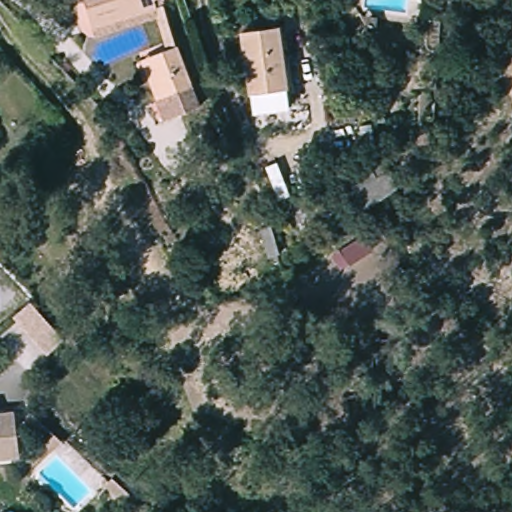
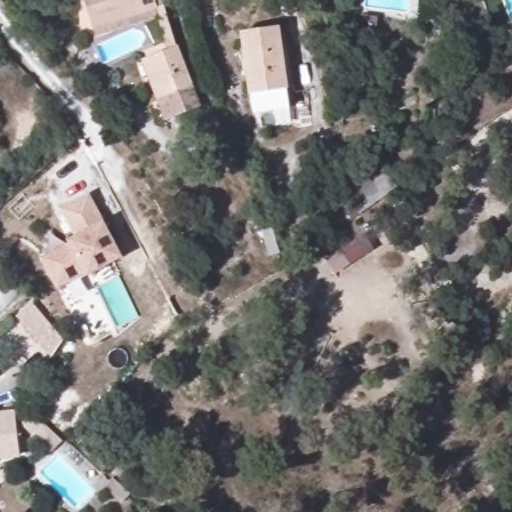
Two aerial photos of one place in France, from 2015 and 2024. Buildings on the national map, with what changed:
unchanged [(128,5),(95,20),(87,0),(156,0),(132,11),(128,5)]
unchanged [(175,36),(162,7),(102,33),(95,20),(128,5),(132,11),(156,0),(167,0),(182,34),(175,36)]
unchanged [(244,28),(288,25),(294,113),(253,115),(244,28)]
unchanged [(145,58),(151,54),(171,44),(177,43),(204,103),(177,114),(170,118),(145,58)]
unchanged [(362,203),(350,169),(384,149),(400,182),(362,203)]
new [(68,245),(66,239),(72,236),(58,209),(87,193),(102,220),(122,258),(86,278),(57,290),(40,258),(68,245)]
new [(30,304),(62,339),(47,353),(15,317),(30,304)]
unchanged [(0,451),(0,406),(12,404),(19,447),(0,451)]
unchanged [(69,438),(60,449),(40,433),(50,421),(69,438)]

